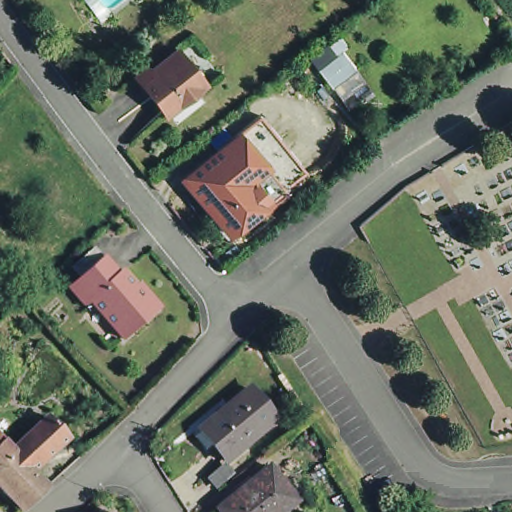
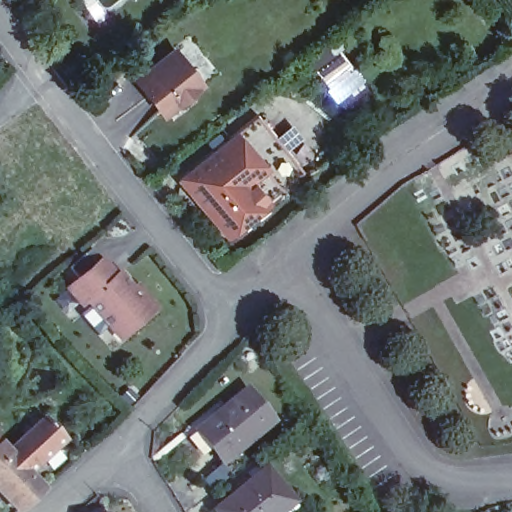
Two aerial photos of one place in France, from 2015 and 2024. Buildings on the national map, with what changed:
unchanged [(305,56),(335,34),(345,47),(339,52),(363,83),(337,101),(305,56)]
unchanged [(141,66),(145,70),(190,36),(217,71),(202,82),(190,65),(184,69),(197,85),(177,100),(173,97),(158,107),(132,74),(141,66)]
unchanged [(183,180),(235,135),(280,190),(228,233),(183,180)]
unchanged [(70,288),(76,283),(105,257),(120,272),(124,269),(137,283),(132,289),(106,313),(100,308),(91,298),(85,303),(70,288)]
unchanged [(137,283),(138,284),(142,280),(165,302),(160,307),(128,335),(106,313),(132,289),(137,283)]
unchanged [(195,422),(225,398),(230,405),(255,383),(283,416),(233,457),(222,441),(215,446),(195,422)]
unchanged [(47,418),(68,439),(32,473),(10,452),(47,418)]
unchanged [(0,442),(10,452),(32,473),(47,488),(22,510),(0,489),(0,442)]
unchanged [(251,477),(254,480),(271,467),(290,490),(292,493),(300,502),(288,511),(287,512),(221,512),(219,509),(237,494),(235,490),(251,477)]
unchanged [(116,512),(95,512),(100,507),(105,512),(111,506),(116,512)]

